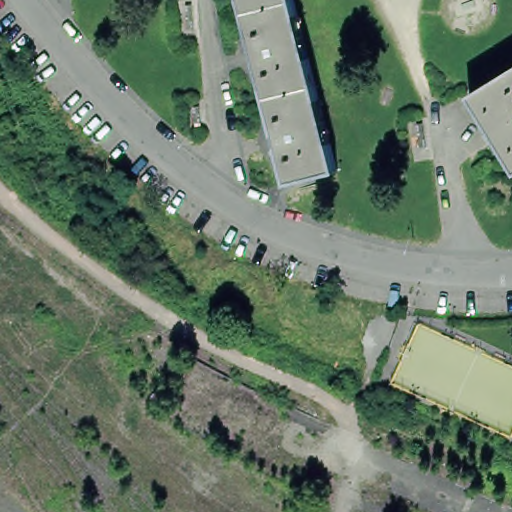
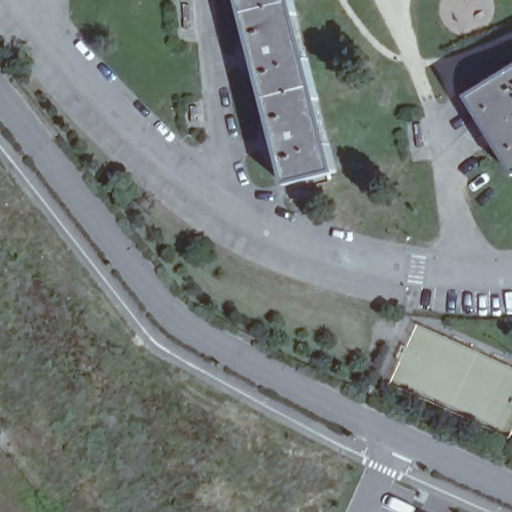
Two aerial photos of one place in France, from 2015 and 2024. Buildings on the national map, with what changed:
unchanged [(241,0),(277,0),(243,9),(241,0)]
unchanged [(264,94),(256,57),(251,58),(248,46),(253,45),(243,9),(277,0),(294,0),(314,81),(264,94)]
unchanged [(512,69),(512,169),(495,141),(468,96),(512,69)]
unchanged [(336,167),(286,180),(276,142),(274,143),(271,131),(274,130),(264,94),(314,81),(336,167)]

